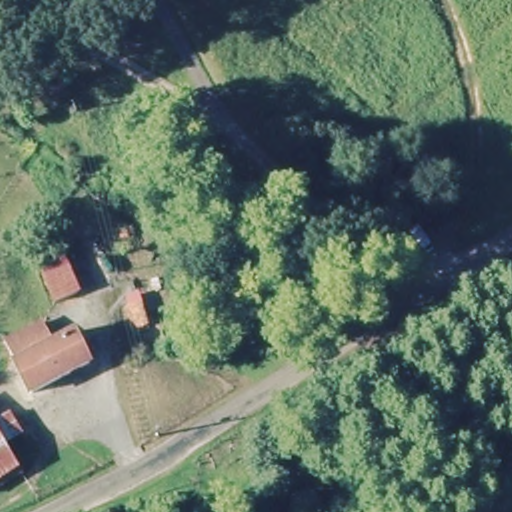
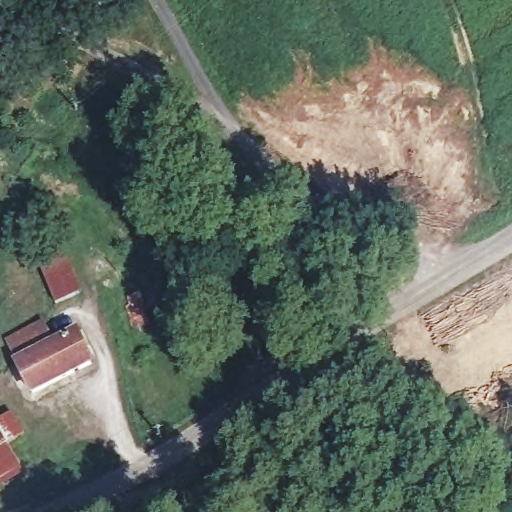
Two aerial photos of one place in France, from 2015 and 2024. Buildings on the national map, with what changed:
unchanged [(79,288),(51,304),(34,267),(63,252),(79,288)]
unchanged [(51,353),(76,337),(93,364),(38,397),(12,353),(40,335),(51,353)]
unchanged [(22,442),(10,452),(18,474),(0,485),(0,421),(11,415),(22,442)]

